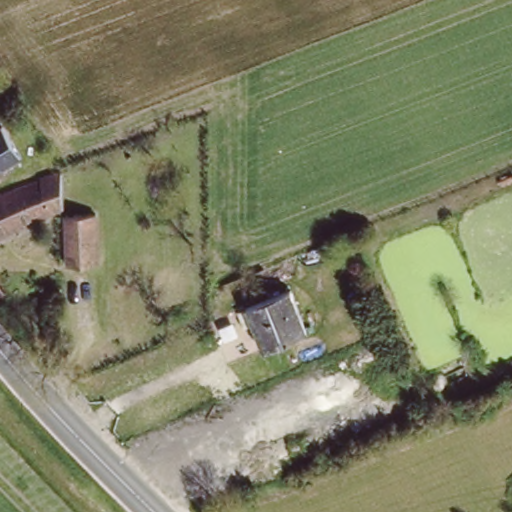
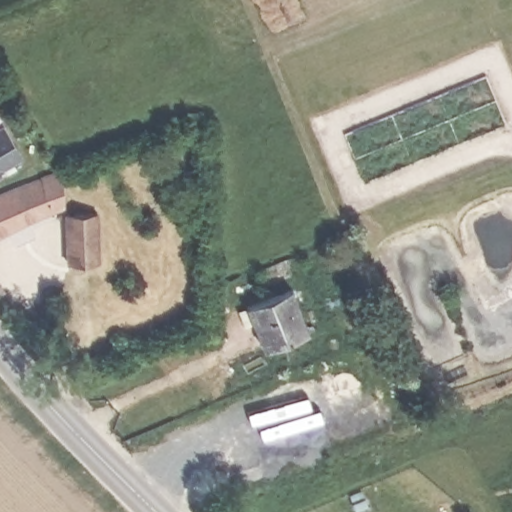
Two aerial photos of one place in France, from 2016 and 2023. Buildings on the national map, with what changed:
unchanged [(6,85),(0,88),(0,76),(6,85)]
unchanged [(6,166),(0,170),(0,157),(6,166)]
unchanged [(0,230),(0,191),(41,172),(48,186),(63,179),(63,198),(0,230)]
unchanged [(98,261),(65,262),(65,212),(98,211),(98,261)]
unchanged [(311,328),(268,347),(258,323),(248,327),(241,311),(251,306),(251,303),(293,285),(311,328)]

